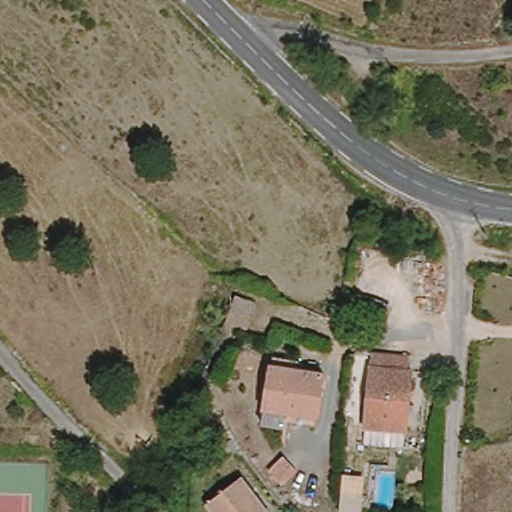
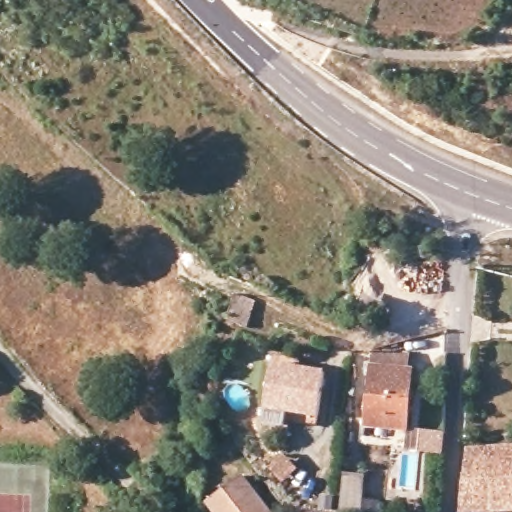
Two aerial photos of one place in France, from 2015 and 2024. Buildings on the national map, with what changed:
unchanged [(255,309),(246,333),(223,324),(233,301),(255,309)]
unchanged [(409,422),(366,419),(371,350),(413,354),(409,422)]
unchanged [(284,414),(283,418),(261,414),(263,402),(269,359),(323,367),(316,410),(314,419),(284,414)]
new [(468,444),(512,444),(512,507),(463,508),(468,444)]
unchanged [(237,478),(264,512),(209,512),(203,504),(237,478)]

